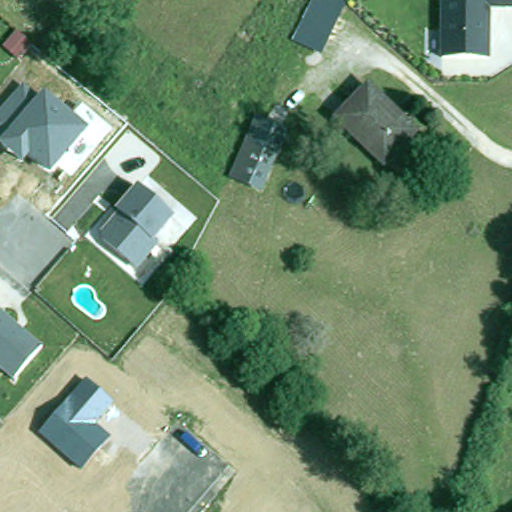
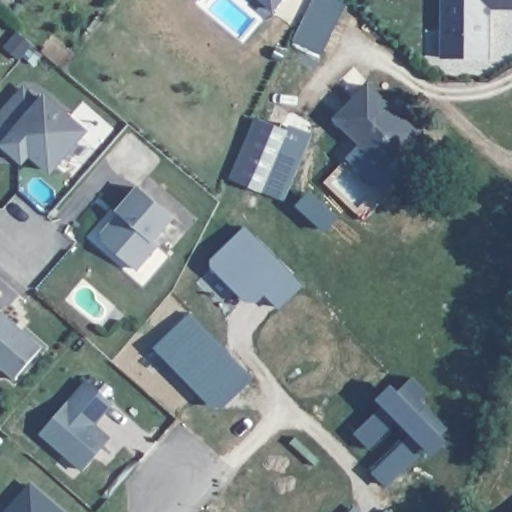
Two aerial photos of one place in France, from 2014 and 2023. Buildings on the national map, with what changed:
new [(197,0),(199,0),(198,1),(197,0)]
new [(279,0),(270,11),(257,0),(279,0)]
unchanged [(319,56),(289,43),(308,0),(346,0),(319,56)]
unchanged [(488,13),(486,59),(437,58),(437,0),(512,0),(512,13),(488,13)]
unchanged [(398,111),(394,115),(416,136),(389,164),(357,131),(339,114),(371,84),(375,89),(398,111)]
unchanged [(45,92),(88,131),(47,175),(27,160),(21,166),(0,148),(0,110),(20,86),(35,103),(45,92)]
unchanged [(287,134),(261,194),(226,179),(252,121),(287,134)]
unchanged [(179,220),(158,245),(163,249),(138,275),(100,241),(118,219),(116,215),(141,189),(179,220)]
new [(306,193),(332,217),(319,229),(294,207),(306,193)]
new [(304,285),(279,309),(264,295),(257,303),(245,302),(211,268),(210,262),(246,227),(304,285)]
unchanged [(13,376),(0,365),(0,312),(38,347),(13,376)]
new [(258,378),(229,407),(218,407),(173,363),(159,349),(171,338),(194,314),(258,378)]
new [(420,448),(392,476),(378,462),(394,445),(381,431),(363,448),(349,434),(377,406),(371,400),(386,386),(392,392),(406,377),(421,391),(412,401),(441,428),(435,434),(441,439),(427,454),(420,448)]
unchanged [(113,407),(95,427),(108,439),(79,471),(38,433),(85,381),(113,407)]
new [(36,483),(70,512),(11,512),(36,483)]
new [(353,507),(359,512),(348,512),(353,507)]
new [(390,512),(384,512),(387,509),(390,512)]

